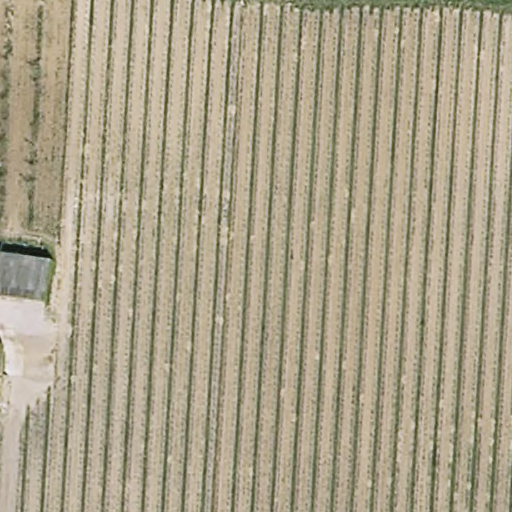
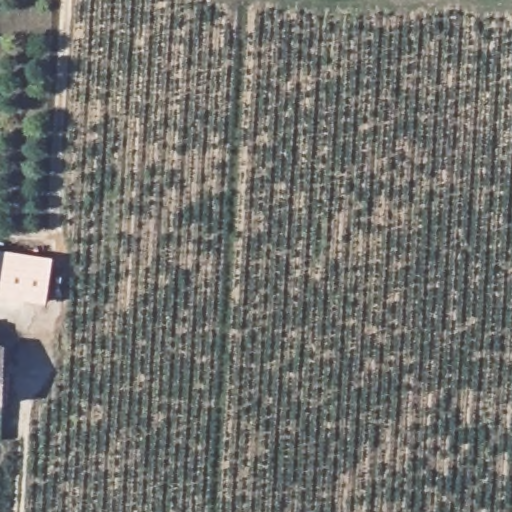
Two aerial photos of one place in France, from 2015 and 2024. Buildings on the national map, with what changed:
unchanged [(54,260),(51,295),(0,291),(0,254),(54,260)]
unchanged [(10,347),(4,406),(0,406),(0,346),(10,347)]

